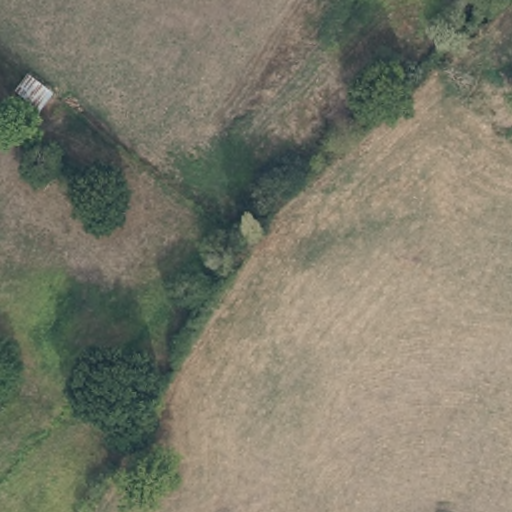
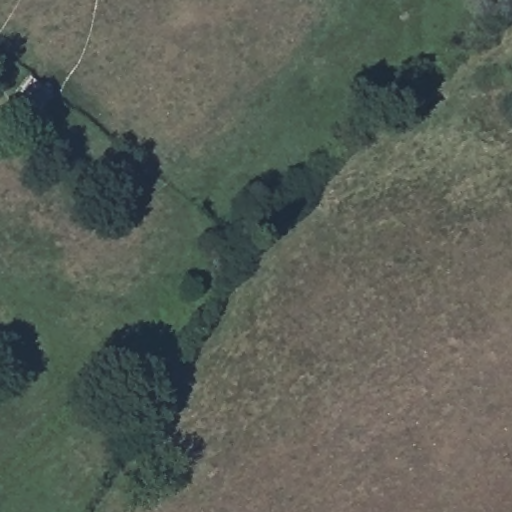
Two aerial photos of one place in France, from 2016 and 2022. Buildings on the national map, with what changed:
[]

